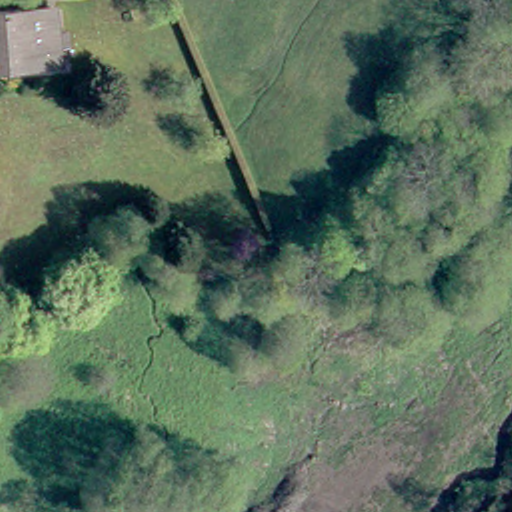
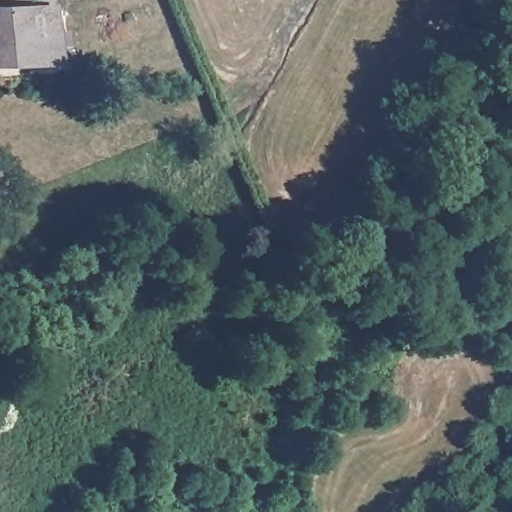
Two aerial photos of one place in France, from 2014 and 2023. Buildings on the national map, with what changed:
unchanged [(53,56),(0,57),(0,7),(50,5),(53,56)]

